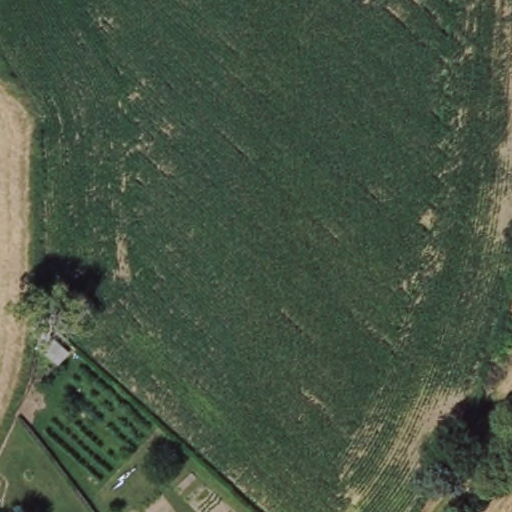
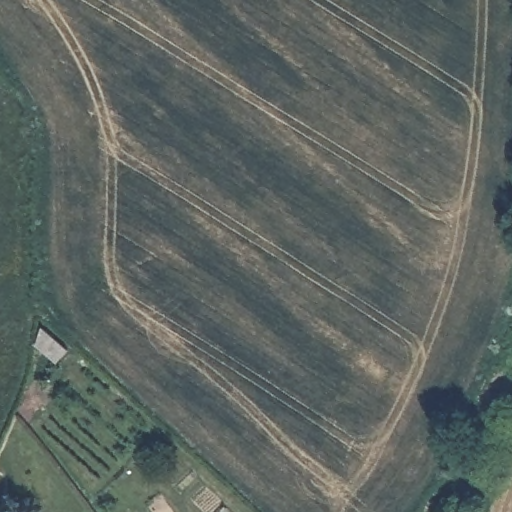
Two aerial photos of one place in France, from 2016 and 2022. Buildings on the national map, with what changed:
unchanged [(55,363),(44,375),(25,360),(29,340),(55,363)]

